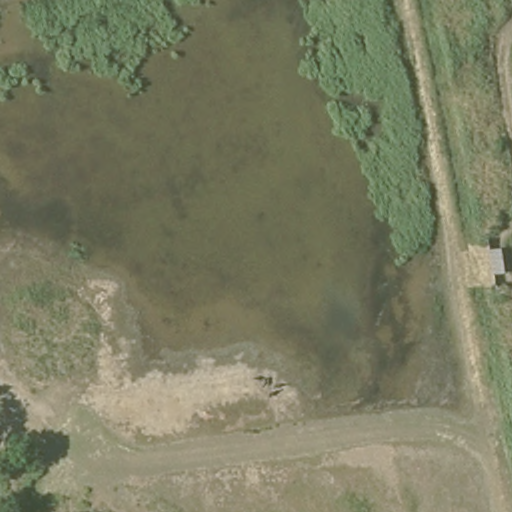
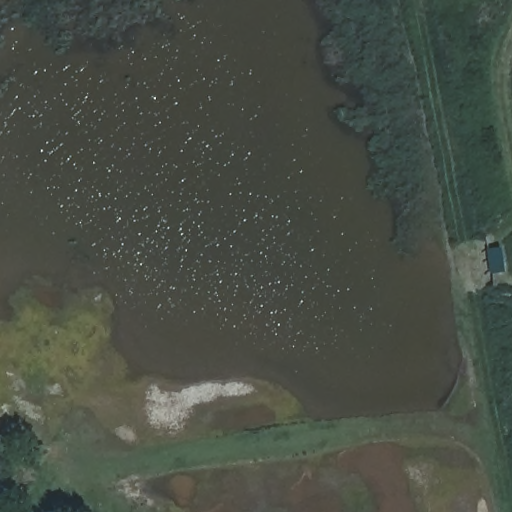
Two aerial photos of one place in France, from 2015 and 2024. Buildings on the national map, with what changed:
unchanged [(18,512),(70,474),(77,485),(42,512),(18,512)]

